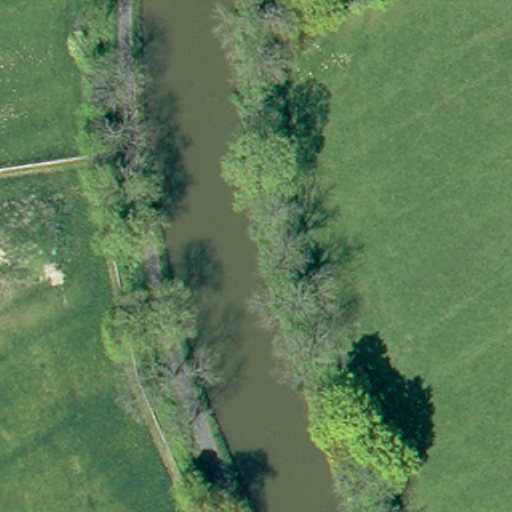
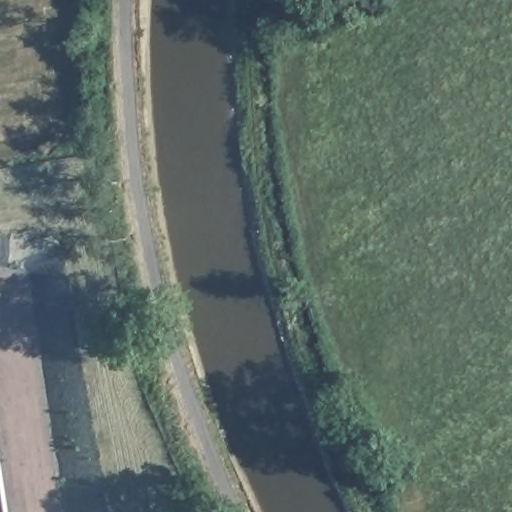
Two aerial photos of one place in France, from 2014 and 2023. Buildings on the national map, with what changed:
new [(6,512),(0,512),(0,473),(6,512)]

